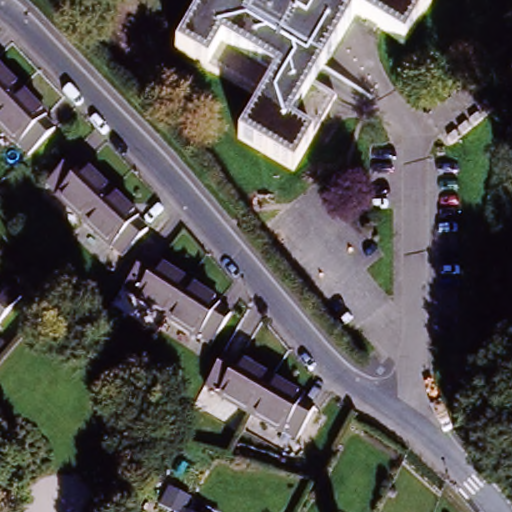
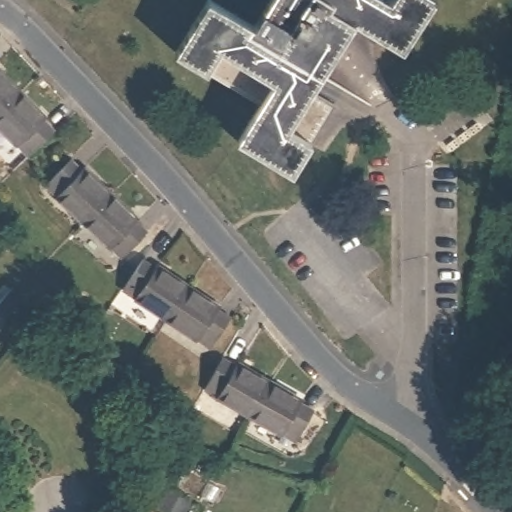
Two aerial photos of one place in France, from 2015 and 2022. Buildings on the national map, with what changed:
unchanged [(402,50),(375,33),(372,38),(362,32),(365,27),(354,21),(312,91),(335,105),(292,175),(237,141),(259,104),(175,53),(206,0),(211,0),(254,26),(270,0),(433,0),(402,50)]
unchanged [(20,91),(0,112),(0,71),(20,91)]
unchanged [(28,156),(18,144),(17,146),(0,129),(0,112),(20,91),(45,117),(43,119),(55,131),(28,156)]
unchanged [(82,228),(55,201),(56,199),(45,189),(70,163),(82,174),(85,171),(112,198),(82,228)]
unchanged [(122,263),(112,252),(110,254),(82,228),(112,198),(138,224),(136,226),(146,237),(122,263)]
unchanged [(155,273),(158,270),(189,290),(166,325),(134,304),(135,302),(123,293),(142,264),(155,273)]
unchanged [(220,310),(217,315),(230,322),(210,352),(197,344),(196,345),(166,325),(189,290),(220,310)]
unchanged [(14,295),(25,305),(2,331),(0,330),(0,310),(14,295)]
unchanged [(235,365),(237,362),(272,382),(251,417),(217,398),(218,396),(205,388),(223,357),(235,365)]
unchanged [(272,382),(302,399),(300,403),(313,410),(296,441),(283,434),(282,435),(251,417),(272,382)]

